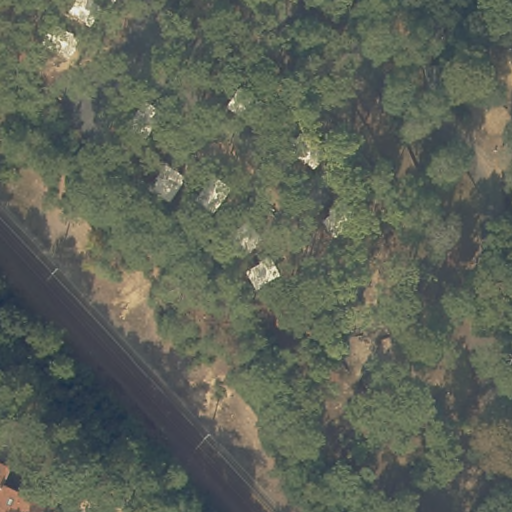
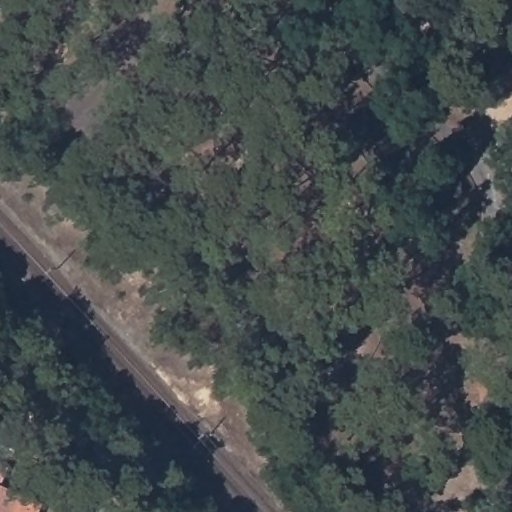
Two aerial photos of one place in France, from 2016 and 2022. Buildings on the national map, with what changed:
unchanged [(0,491),(0,471),(7,473),(0,491)]
unchanged [(39,509),(38,512),(0,512),(0,492),(39,509)]

